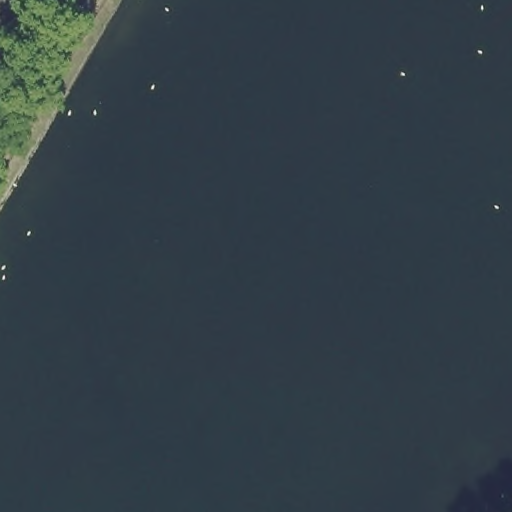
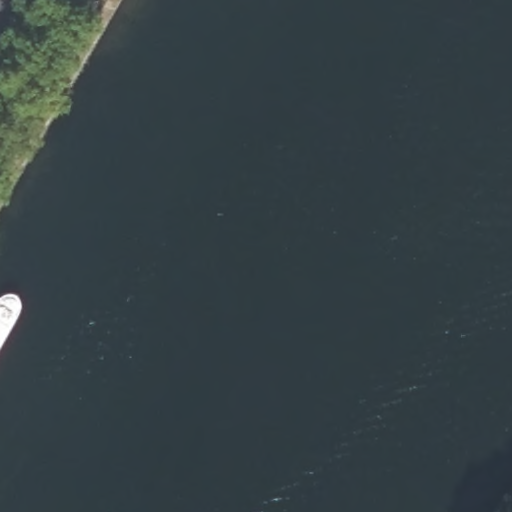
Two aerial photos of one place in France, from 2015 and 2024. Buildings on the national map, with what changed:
[]

